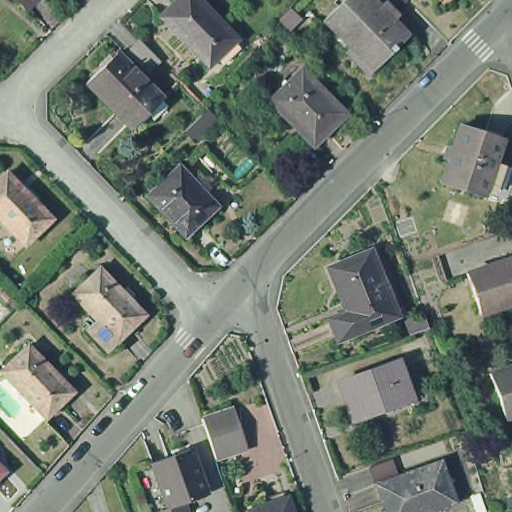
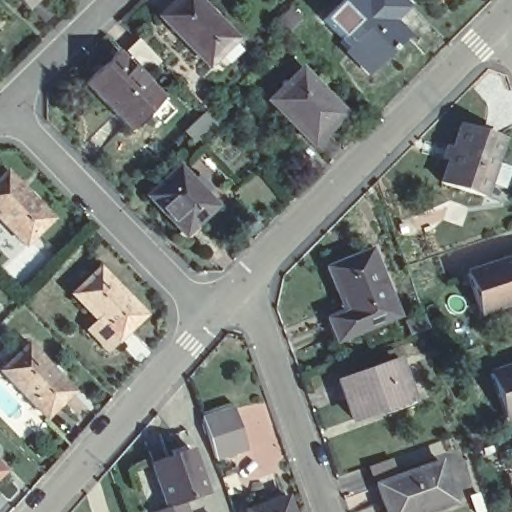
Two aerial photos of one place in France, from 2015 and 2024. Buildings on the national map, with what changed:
unchanged [(212,65),(164,15),(179,0),(203,0),(240,38),(212,65)]
unchanged [(345,39),(341,43),(324,24),(348,0),(367,0),(379,12),(383,6),(379,0),(403,0),(407,4),(395,16),(394,28),(405,39),(376,69),(345,39)]
unchanged [(160,61),(145,74),(123,52),(137,39),(160,61)]
unchanged [(160,96),(135,123),(90,78),(116,51),(160,96)]
unchanged [(350,113),(317,144),(275,100),(306,69),(350,113)]
unchanged [(215,118),(192,141),(182,131),(205,109),(215,118)]
unchanged [(494,193),(480,188),(476,200),(434,185),(454,129),(495,143),(488,164),(501,170),(494,193)]
unchanged [(216,205),(184,235),(146,194),(147,194),(144,190),(172,161),(176,166),(178,165),(216,205)]
unchanged [(24,243),(0,218),(0,177),(6,171),(50,219),(24,243)]
unchanged [(395,312),(336,339),(327,315),(343,308),(326,266),(369,248),(395,312)]
unchanged [(472,318),(459,278),(512,259),(512,304),(472,318)]
unchanged [(89,324),(100,314),(76,288),(104,262),(148,310),(121,336),(110,347),(89,324)]
unchanged [(421,314),(425,325),(409,331),(405,320),(421,314)]
unchanged [(71,387),(45,412),(0,365),(27,339),(71,387)]
unchanged [(406,392),(350,412),(337,376),(393,355),(406,392)]
unchanged [(500,432),(498,426),(482,380),(512,370),(512,428),(500,432)]
unchanged [(237,414),(250,454),(220,465),(207,424),(237,414)]
unchanged [(155,464),(195,449),(210,494),(186,502),(171,509),(155,464)]
unchanged [(452,499),(416,512),(385,512),(373,483),(438,458),(452,499)]
unchanged [(0,467),(0,462),(2,465),(0,467)]
unchanged [(241,501),(281,486),(290,512),(245,512),(241,501)]
unchanged [(186,502),(190,512),(161,512),(171,509),(186,502)]

